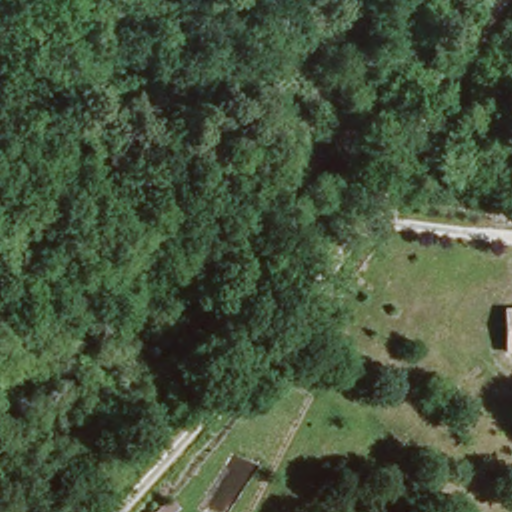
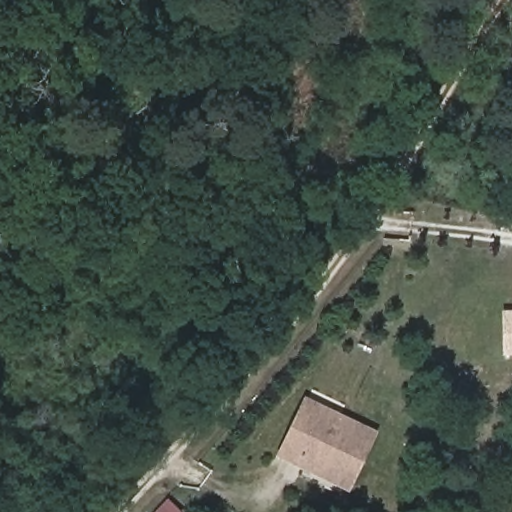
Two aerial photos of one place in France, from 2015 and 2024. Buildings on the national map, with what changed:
unchanged [(509,352),(505,315),(512,314),(512,352),(509,352)]
new [(351,492),(276,457),(305,397),(380,432),(351,492)]
new [(182,512),(153,512),(167,498),(182,512)]

